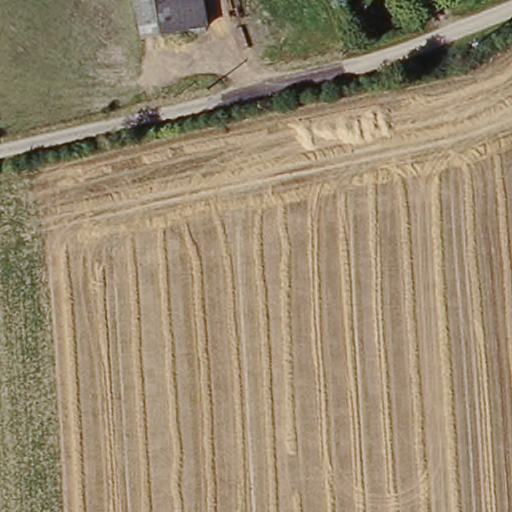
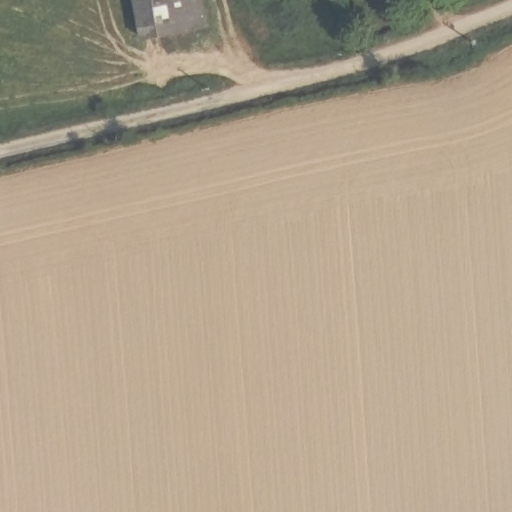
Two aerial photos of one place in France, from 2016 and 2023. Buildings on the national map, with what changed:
unchanged [(137,41),(131,0),(156,0),(163,36),(137,41)]
unchanged [(163,36),(156,0),(203,0),(208,27),(163,36)]

